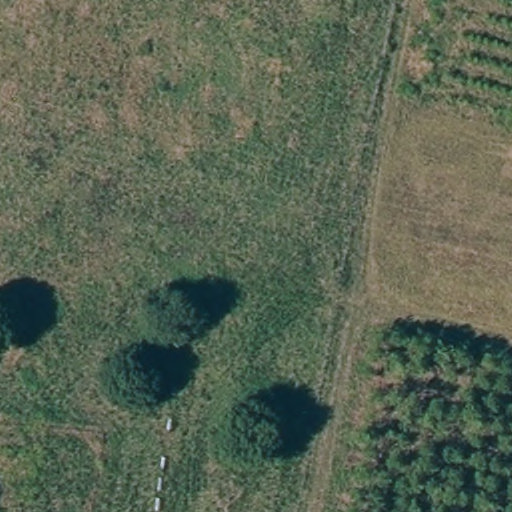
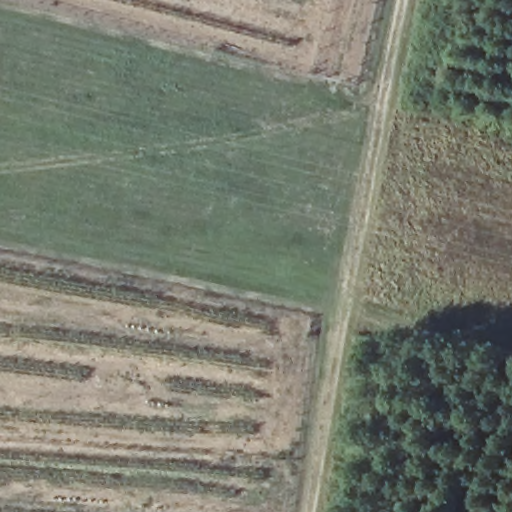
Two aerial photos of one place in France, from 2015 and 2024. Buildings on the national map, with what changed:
[]

